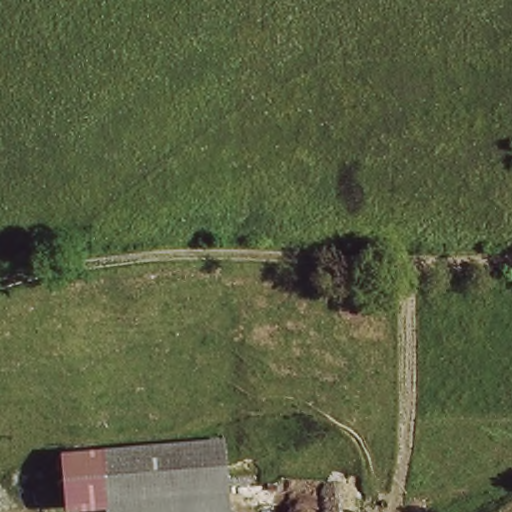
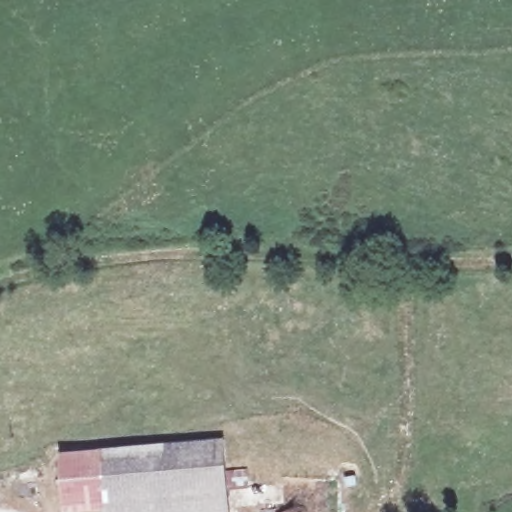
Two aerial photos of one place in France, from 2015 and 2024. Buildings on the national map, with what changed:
unchanged [(97,450),(222,425),(243,512),(111,512),(111,511),(97,450)]
unchanged [(111,511),(99,512),(64,512),(62,456),(97,450),(111,511)]

